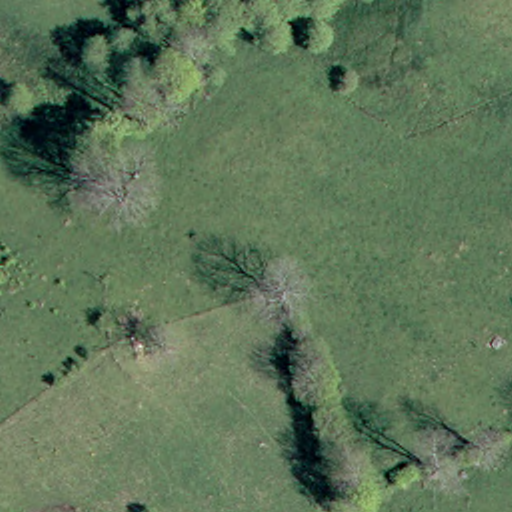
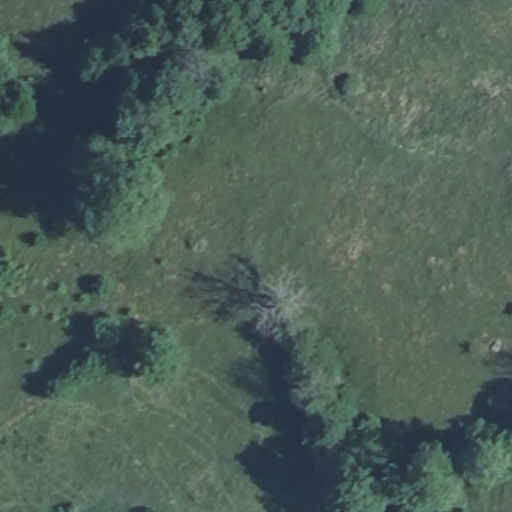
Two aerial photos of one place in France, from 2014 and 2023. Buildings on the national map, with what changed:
[]

